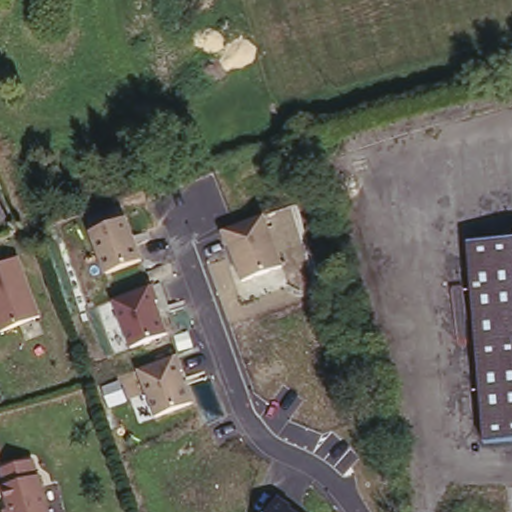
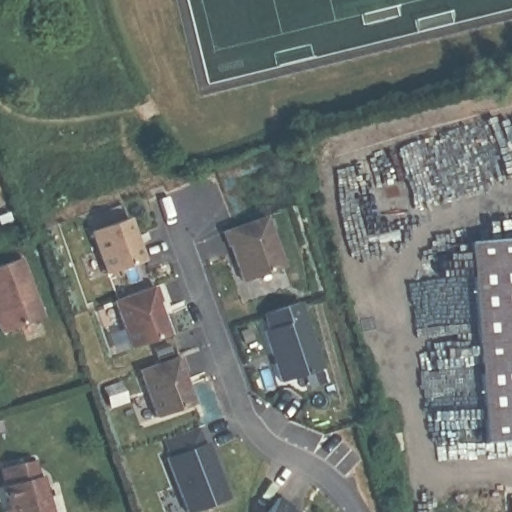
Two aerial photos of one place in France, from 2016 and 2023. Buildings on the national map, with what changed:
unchanged [(266,214),(285,266),(241,282),(222,229),(266,214)]
unchanged [(141,262),(102,275),(89,232),(128,218),(141,262)]
unchanged [(468,242),(512,239),(512,439),(484,440),(468,242)]
unchanged [(15,258),(39,319),(2,334),(0,328),(0,264),(15,258)]
unchanged [(127,348),(112,301),(154,285),(159,300),(156,300),(167,335),(127,348)]
new [(325,367),(283,381),(266,329),(271,325),(266,311),(302,299),(325,367)]
unchanged [(191,403),(155,417),(138,371),(177,356),(191,403)]
new [(175,458),(180,456),(171,441),(197,429),(202,442),(205,441),(230,497),(199,509),(175,458)]
unchanged [(2,490),(0,481),(0,467),(32,456),(45,512),(2,512),(0,503),(0,490),(2,490)]
unchanged [(296,512),(267,512),(277,499),(296,512)]

